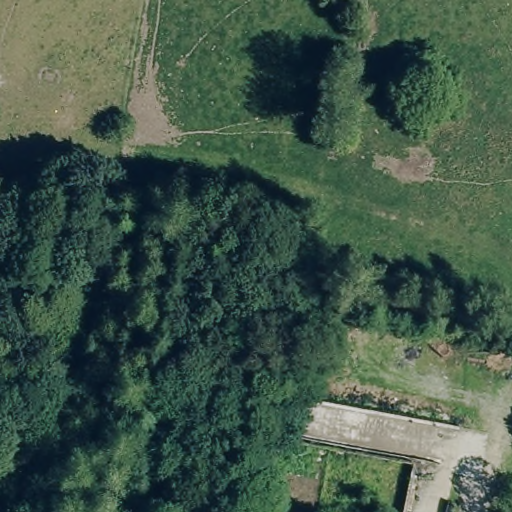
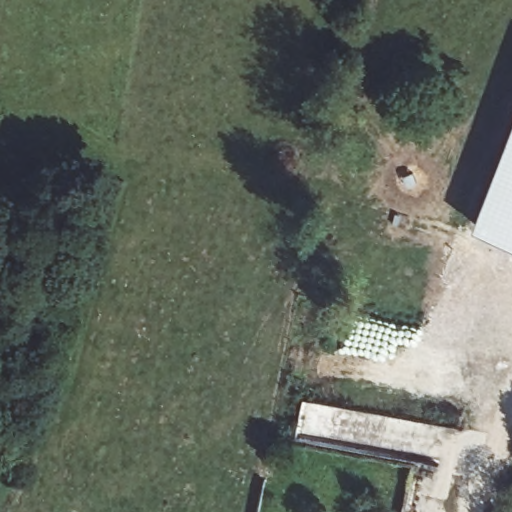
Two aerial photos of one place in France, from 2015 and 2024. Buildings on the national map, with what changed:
new [(512,131),(512,240),(475,225),(512,131)]

